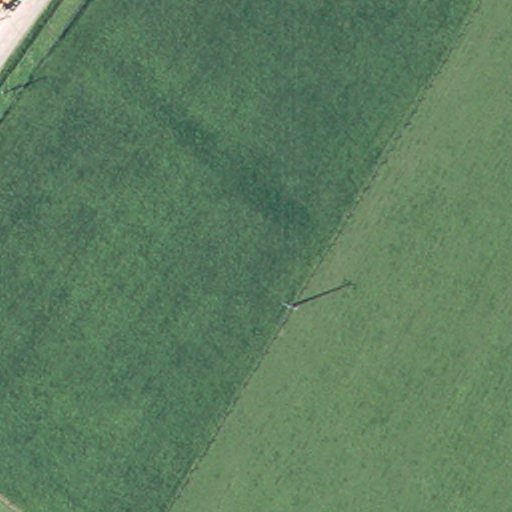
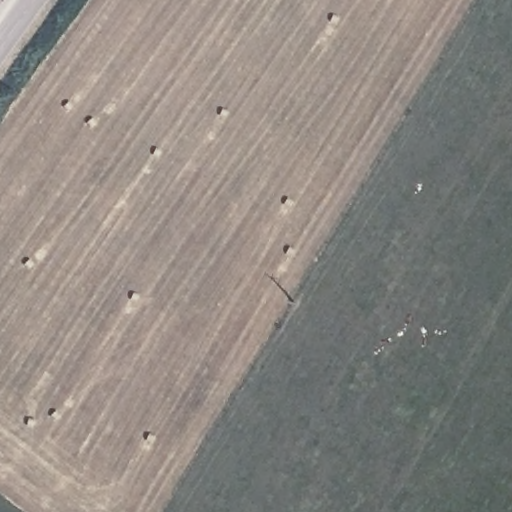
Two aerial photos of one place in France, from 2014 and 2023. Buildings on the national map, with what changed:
[]

